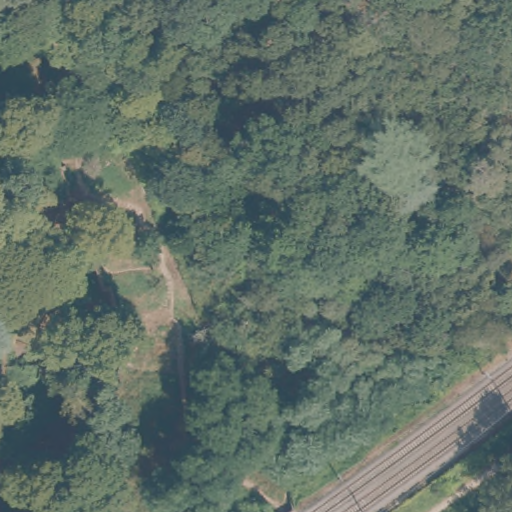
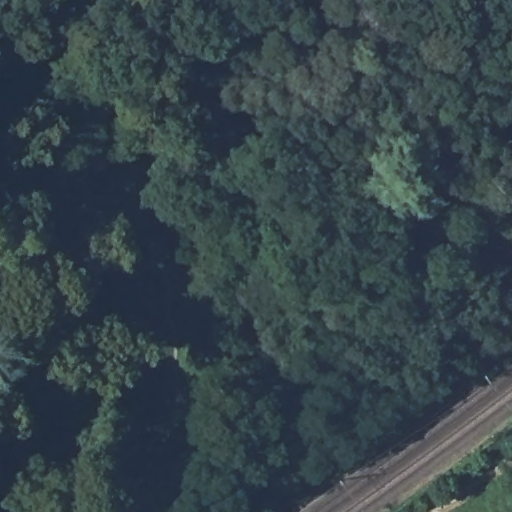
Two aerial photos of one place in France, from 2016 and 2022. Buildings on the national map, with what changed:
[]

